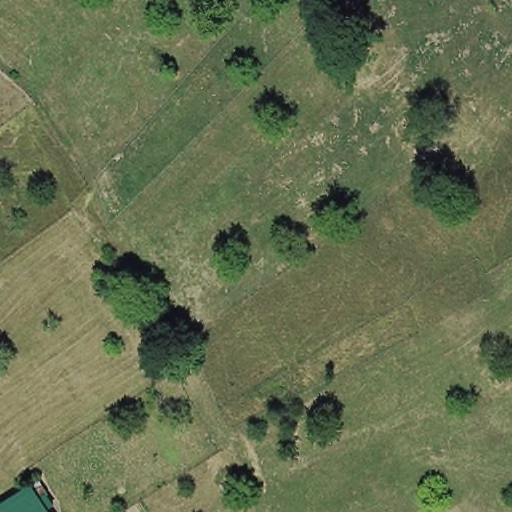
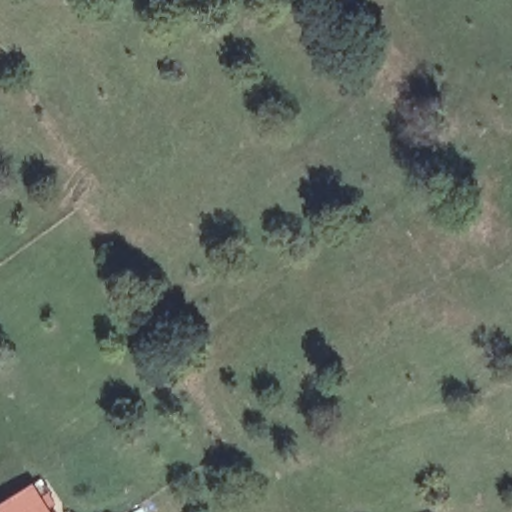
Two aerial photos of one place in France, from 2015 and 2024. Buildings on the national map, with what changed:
unchanged [(46,505),(52,502),(58,511),(58,512),(15,512),(39,495),(46,505)]

